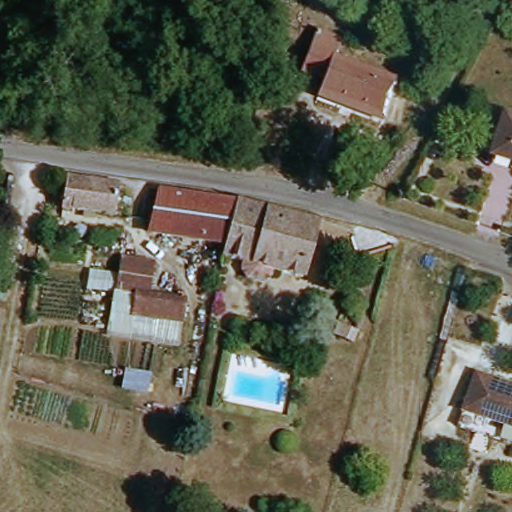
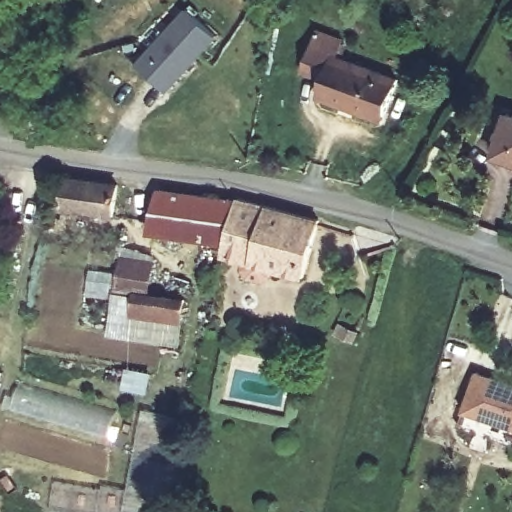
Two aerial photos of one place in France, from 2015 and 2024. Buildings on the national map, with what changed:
new [(185,10),(216,39),(169,92),(137,64),(185,10)]
unchanged [(401,80),(387,117),(325,96),(330,82),(308,74),(322,34),(345,42),(340,58),(401,80)]
unchanged [(505,112),(512,115),(512,160),(492,153),(505,112)]
unchanged [(119,186),(116,217),(66,212),(70,179),(119,186)]
unchanged [(233,204),(226,246),(151,231),(159,190),(233,204)]
unchanged [(245,272),(247,263),(228,259),(239,202),(318,222),(305,277),(276,271),(274,279),(266,283),(250,280),(245,272)]
unchanged [(125,312),(126,302),(120,301),(124,270),(155,273),(152,295),(190,299),(186,321),(125,312)]
unchanged [(467,408),(479,371),(512,380),(512,422),(467,408)]

